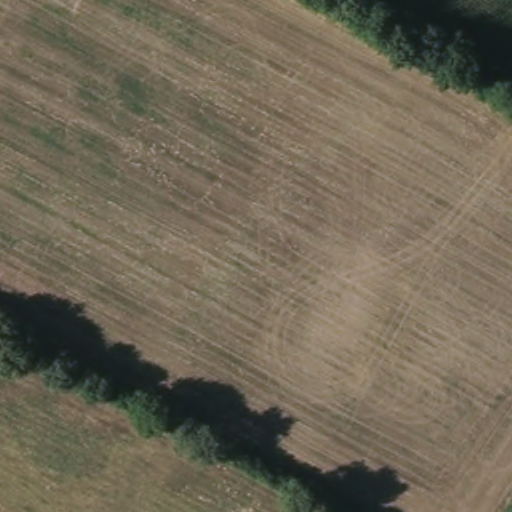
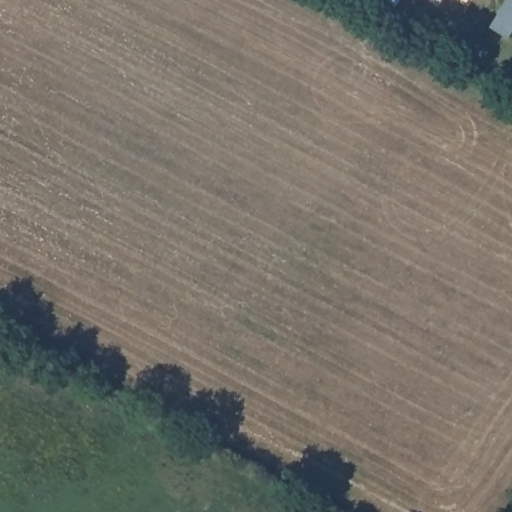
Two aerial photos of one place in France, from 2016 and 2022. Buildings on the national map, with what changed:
new [(464,5),(455,0),(467,0),(464,5)]
new [(502,46),(483,34),(506,0),(512,0),(512,36),(510,34),(502,46)]

